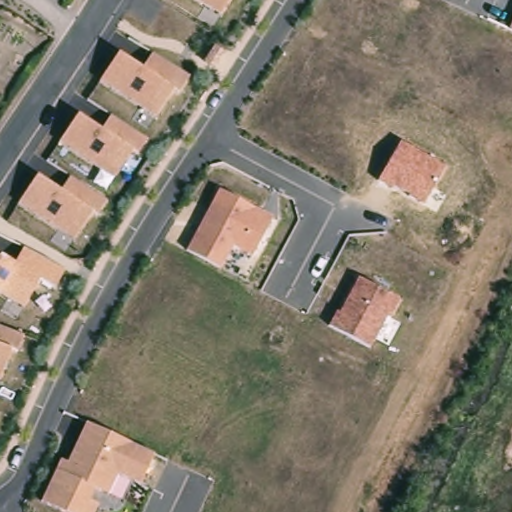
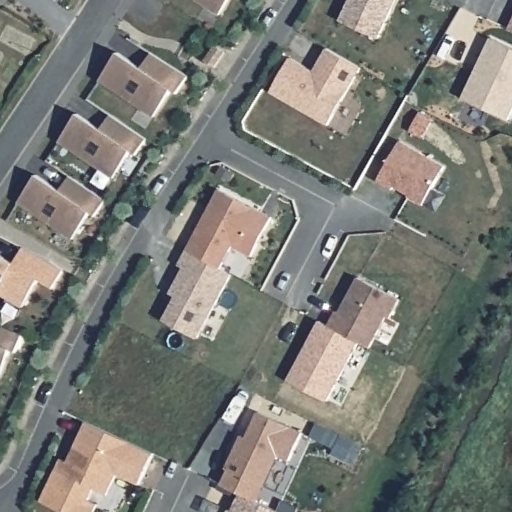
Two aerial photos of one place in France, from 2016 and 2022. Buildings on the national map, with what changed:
unchanged [(229,0),(219,15),(195,0),(229,0)]
new [(340,20),(349,0),(397,0),(378,36),(340,20)]
unchanged [(512,31),(509,29),(512,23),(512,31)]
new [(512,48),(512,112),(509,118),(463,96),(490,38),(512,48)]
new [(293,58),(316,72),(329,48),(363,68),(331,125),(273,92),(293,58)]
unchanged [(101,79),(119,52),(144,67),(151,52),(191,76),(179,93),(173,90),(153,118),(101,79)]
unchanged [(58,141),(79,112),(101,127),(109,114),(147,138),(138,153),(133,150),(112,178),(58,141)]
unchanged [(394,186),(391,190),(378,183),(399,142),(444,166),(421,203),(394,186)]
unchanged [(19,202),(38,173),(60,188),(68,174),(107,200),(99,215),(93,212),(73,240),(19,202)]
unchanged [(186,248),(218,188),(273,218),(250,256),(232,245),(221,269),(186,248)]
unchanged [(0,294),(0,254),(16,261),(23,247),(65,268),(55,287),(40,280),(23,308),(0,294)]
new [(170,293),(183,266),(178,264),(186,248),(221,269),(232,273),(198,337),(164,319),(176,295),(170,293)]
unchanged [(330,325),(358,276),(401,297),(371,349),(330,325)]
new [(288,379),(318,320),(329,326),(358,341),(327,401),(288,379)]
unchanged [(23,333),(17,351),(11,349),(0,375),(0,325),(23,333)]
new [(232,509),(234,510),(242,493),(223,484),(231,469),(228,468),(240,443),(245,445),(261,411),(305,432),(292,460),(281,455),(267,486),(260,501),(283,512),(231,512),(232,509)]
unchanged [(40,501),(59,457),(69,462),(87,423),(154,453),(141,482),(115,472),(107,492),(94,488),(88,501),(99,505),(96,512),(65,512),(40,501)]

